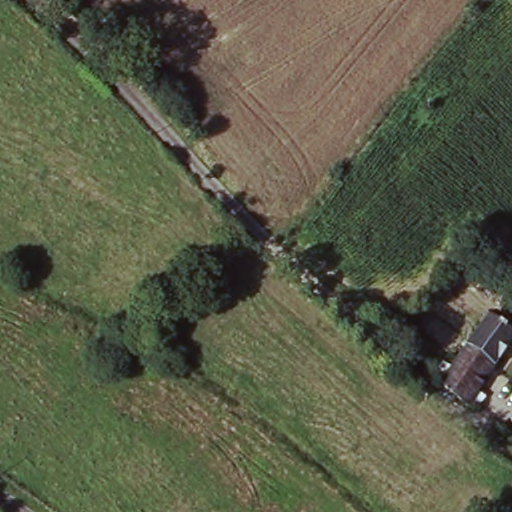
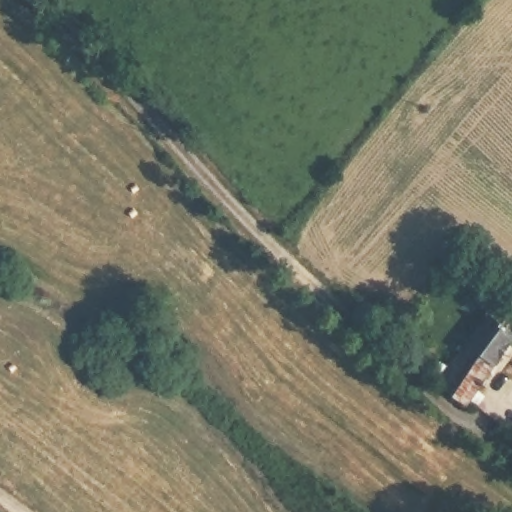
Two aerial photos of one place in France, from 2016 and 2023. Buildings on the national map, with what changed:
unchanged [(512,328),(512,342),(466,403),(438,380),(490,312),(512,328)]

